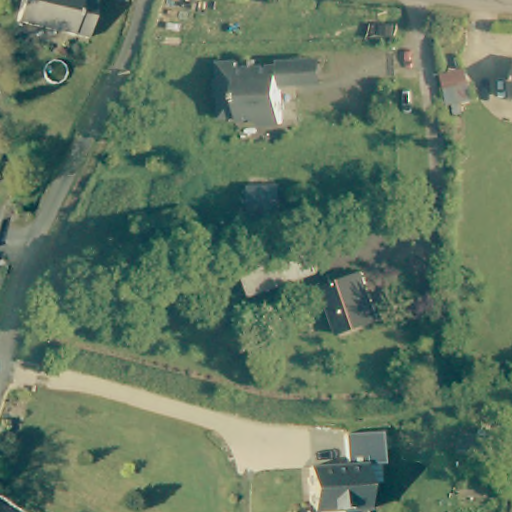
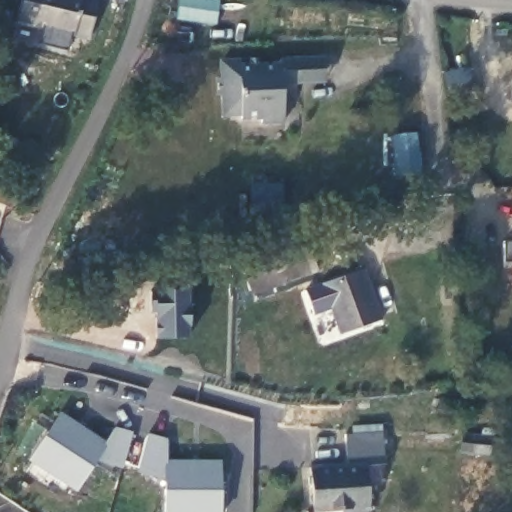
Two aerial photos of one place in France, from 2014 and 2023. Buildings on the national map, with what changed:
unchanged [(83,41),(13,24),(19,0),(92,0),(83,41)]
unchanged [(276,60),(321,56),(322,80),(296,83),(280,84),(285,122),(260,124),(260,121),(237,122),(237,118),(218,120),(217,100),(212,99),(211,84),(215,84),(214,69),(214,66),(224,66),(232,65),(233,69),(241,69),(241,62),(241,61),(249,60),(249,61),(249,68),(276,67),(276,60)]
unchanged [(276,196),(276,213),(249,212),(249,195),(276,196)]
unchanged [(310,240),(316,265),(249,289),(241,265),(310,240)]
new [(504,263),(504,241),(512,241),(512,262),(504,263)]
unchanged [(339,335),(322,290),(363,274),(379,320),(339,335)]
new [(185,290),(187,338),(160,339),(159,312),(154,312),(153,291),(185,290)]
new [(58,412),(106,442),(113,428),(132,434),(124,468),(95,463),(76,493),(28,462),(58,412)]
new [(137,472),(148,433),(166,437),(168,460),(221,459),(222,512),(164,512),(164,481),(137,472)]
unchanged [(314,511),(313,467),(350,467),(350,436),(388,435),(388,467),(383,467),(384,486),(370,486),(370,512),(307,512),(307,511),(314,511)]
unchanged [(499,443),(498,461),(469,460),(470,443),(499,443)]

